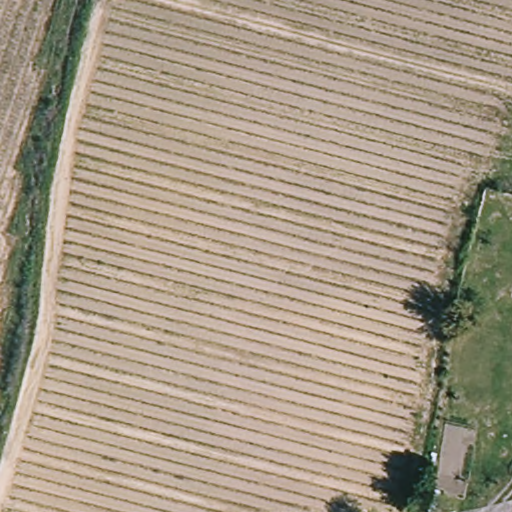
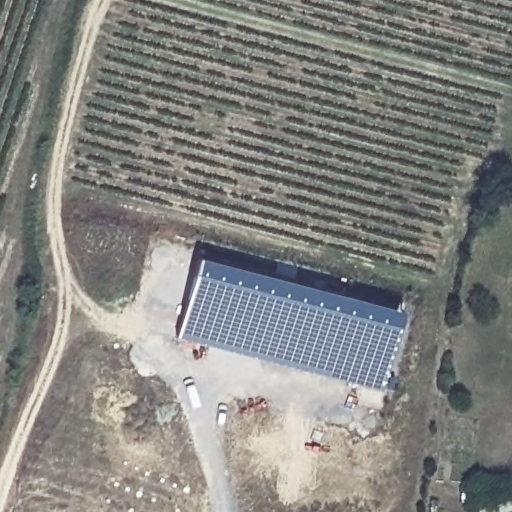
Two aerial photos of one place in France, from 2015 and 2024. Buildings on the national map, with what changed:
new [(176,335),(198,255),(403,309),(379,389),(176,335)]

